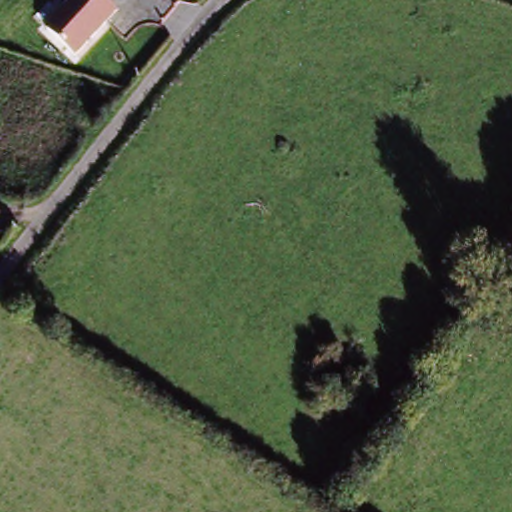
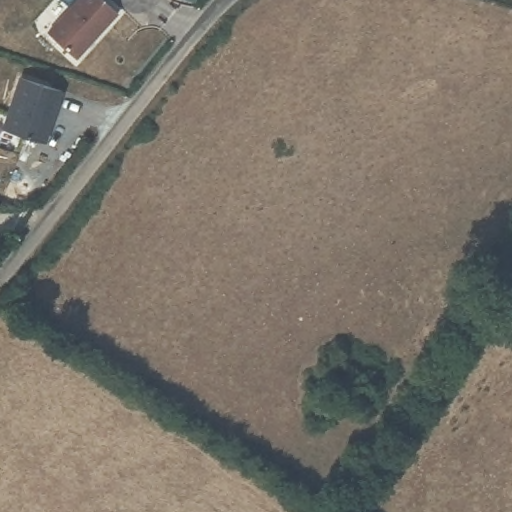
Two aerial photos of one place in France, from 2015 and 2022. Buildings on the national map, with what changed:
unchanged [(118,14),(74,58),(46,34),(75,0),(101,0),(118,14)]
new [(21,76),(62,91),(49,126),(48,125),(42,142),(3,127),(21,76)]

